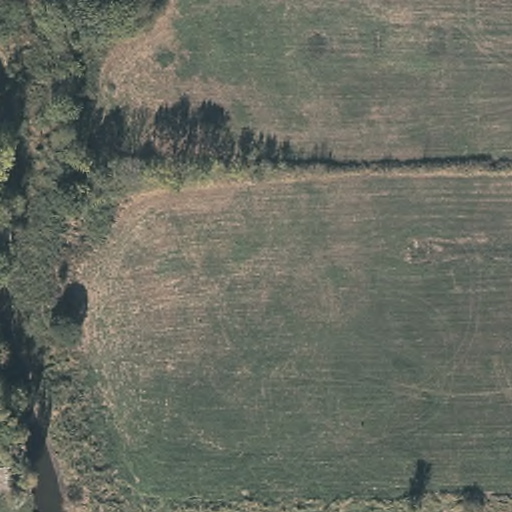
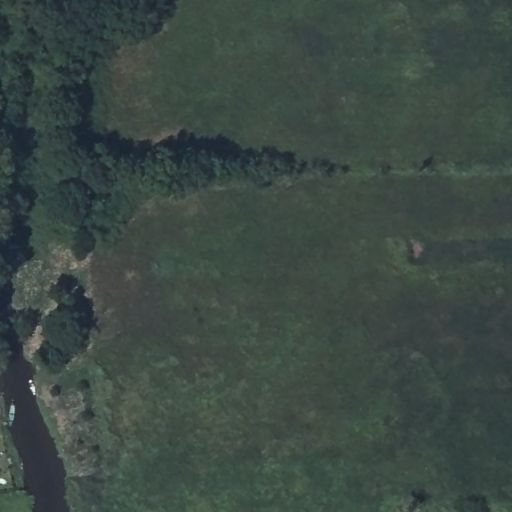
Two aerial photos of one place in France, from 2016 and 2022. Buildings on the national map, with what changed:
[]

